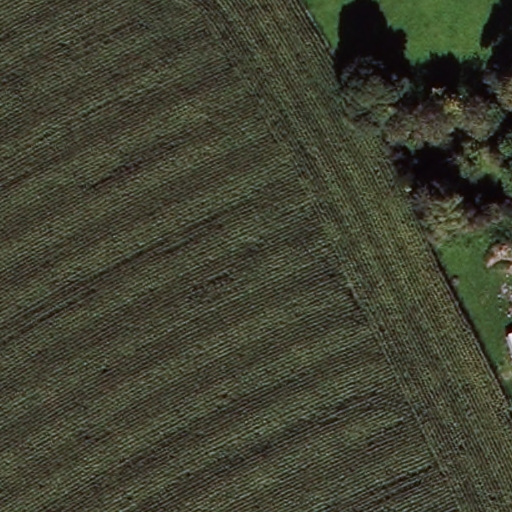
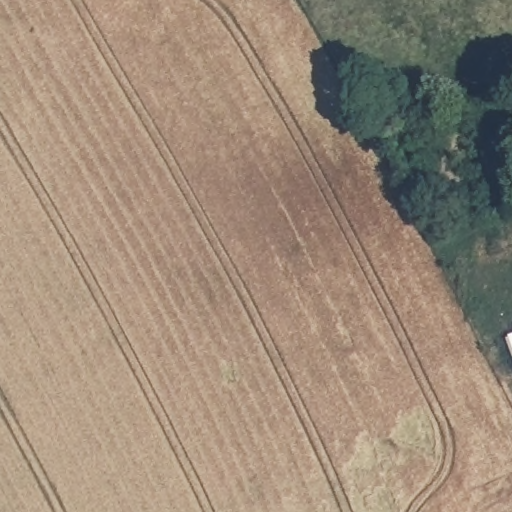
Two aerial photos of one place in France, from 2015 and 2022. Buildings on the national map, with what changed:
[]

